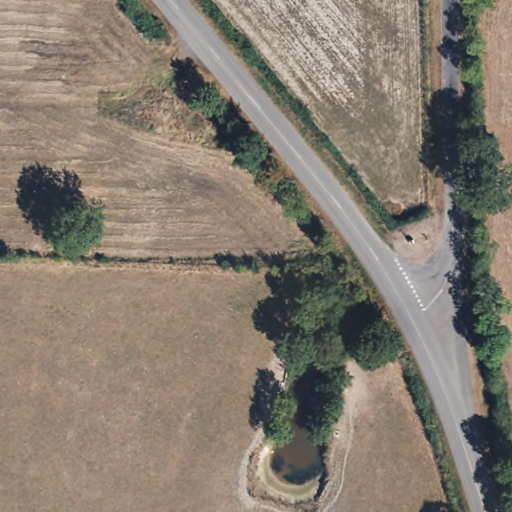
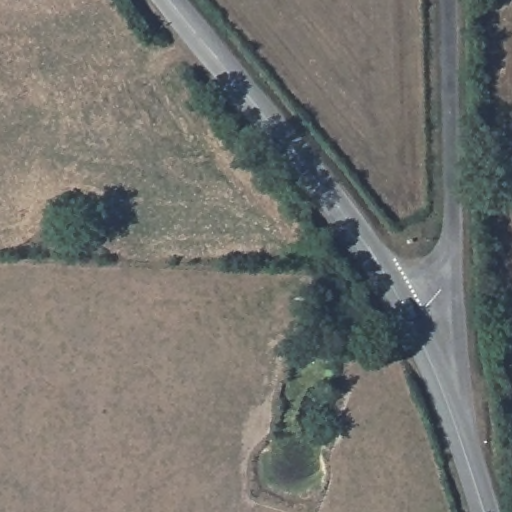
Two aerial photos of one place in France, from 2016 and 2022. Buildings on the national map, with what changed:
[]

